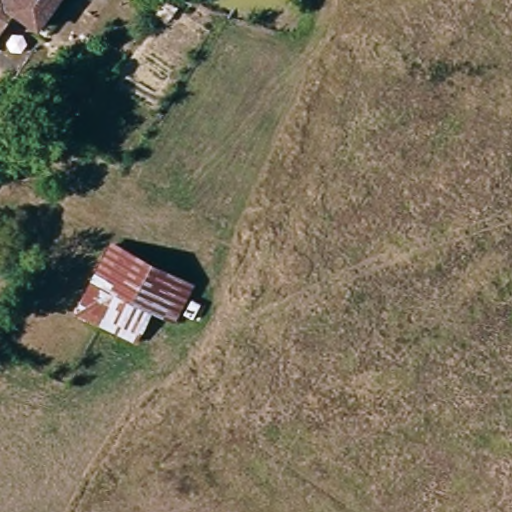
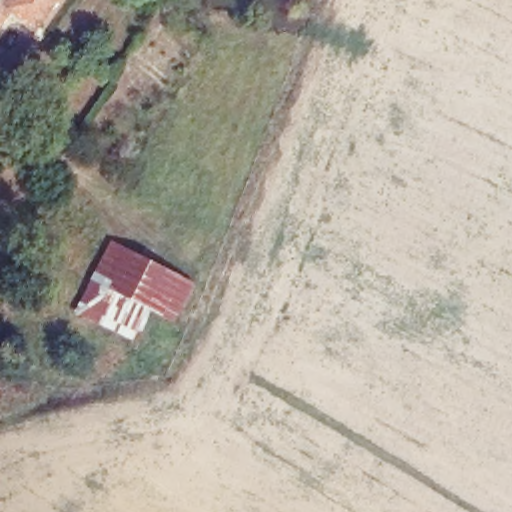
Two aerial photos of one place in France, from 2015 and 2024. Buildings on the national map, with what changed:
unchanged [(62,0),(48,21),(37,14),(18,1),(0,27),(0,0),(62,0)]
unchanged [(116,241),(199,281),(183,314),(154,299),(137,336),(83,311),(116,241)]

